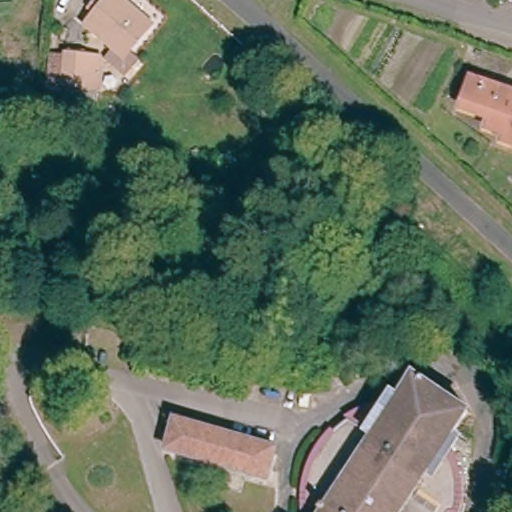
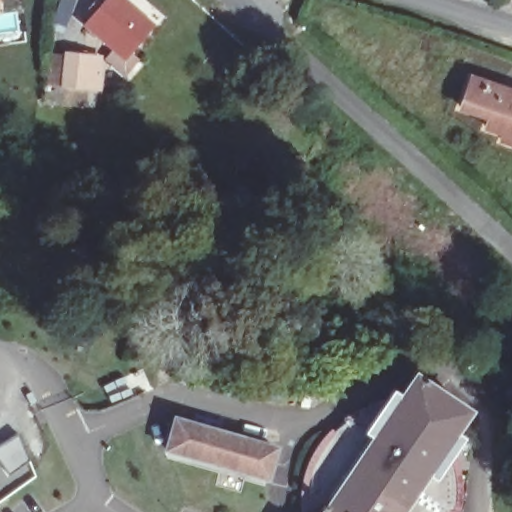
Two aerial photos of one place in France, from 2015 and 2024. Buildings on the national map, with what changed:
unchanged [(120,0),(147,24),(121,58),(83,25),(103,0),(120,0)]
unchanged [(46,85),(49,61),(61,62),(61,53),(96,57),(93,89),(46,85)]
unchanged [(495,85),(512,90),(512,144),(502,141),(503,134),(486,128),(489,118),(461,108),(472,76),(495,85)]
unchanged [(327,500),(321,495),(299,506),(299,500),(303,475),(313,452),(327,433),(342,421),(356,430),(360,422),(356,419),(357,412),(375,407),(378,409),(388,395),(395,401),(411,376),(434,392),(463,412),(448,436),(453,440),(445,453),(449,472),(451,488),(449,510),(441,511),(441,512),(318,512),(327,500)]
unchanged [(275,448),(267,478),(166,450),(175,419),(275,448)]
new [(38,476),(0,503),(0,445),(16,435),(38,476)]

